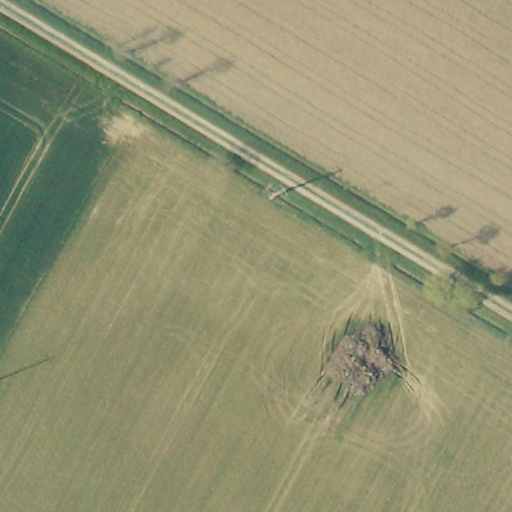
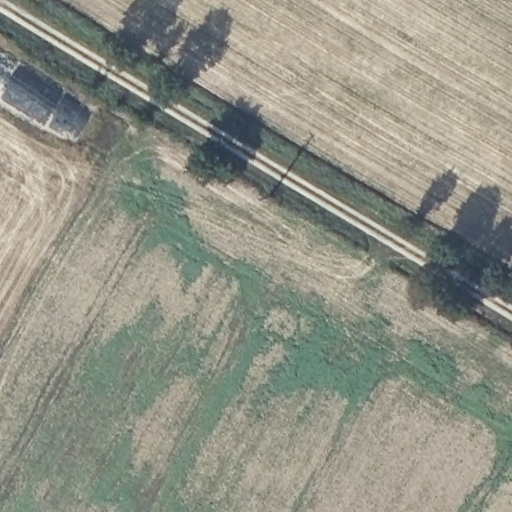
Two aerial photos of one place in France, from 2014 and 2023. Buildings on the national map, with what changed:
[]

